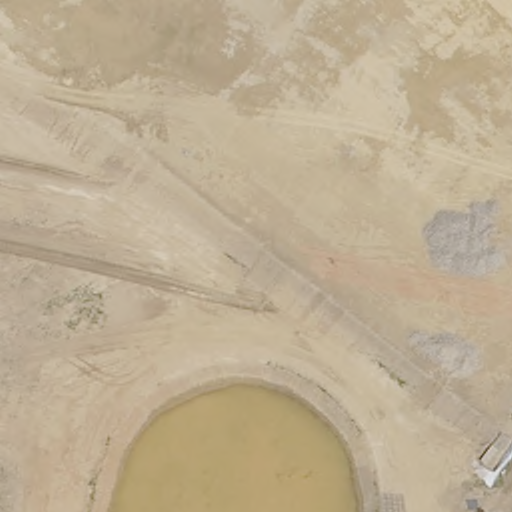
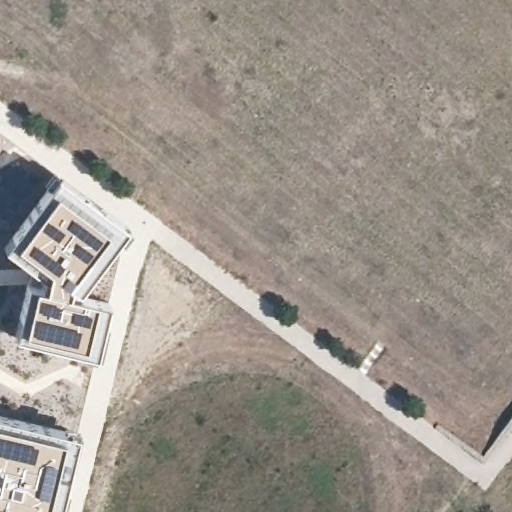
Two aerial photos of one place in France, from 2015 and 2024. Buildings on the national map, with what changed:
new [(39,196),(57,175),(126,227),(78,291),(108,303),(95,357),(13,335),(26,283),(43,286),(46,270),(40,266),(36,271),(3,247),(39,196)]
new [(58,512),(12,512),(0,508),(0,414),(77,434),(58,512)]

